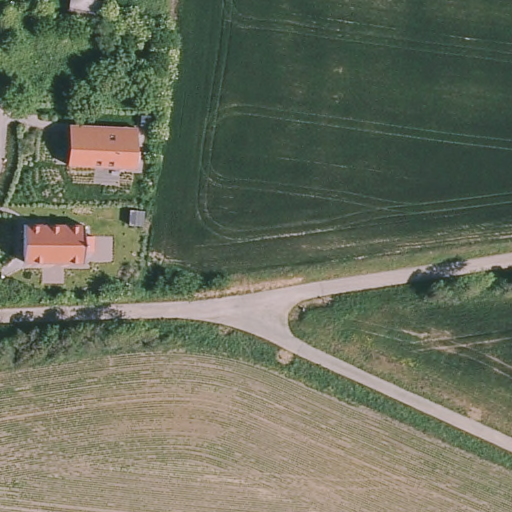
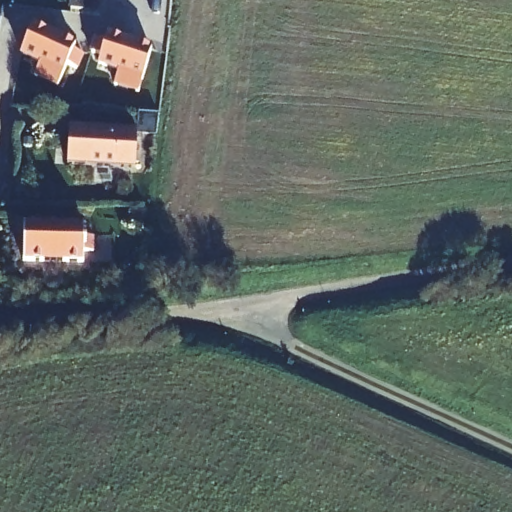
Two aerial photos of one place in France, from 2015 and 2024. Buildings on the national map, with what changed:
unchanged [(70,0),(73,0),(102,4),(102,20),(69,15),(70,0)]
new [(27,53),(37,26),(81,44),(70,71),(27,53)]
new [(106,61),(113,33),(159,45),(151,74),(106,61)]
new [(108,52),(98,50),(102,35),(112,38),(108,52)]
new [(41,75),(46,61),(70,71),(64,85),(41,75)]
new [(122,81),(126,67),(151,74),(147,88),(122,81)]
unchanged [(69,124),(136,126),(136,167),(67,165),(69,124)]
unchanged [(82,261),(23,262),(23,222),(82,224),(82,261)]

